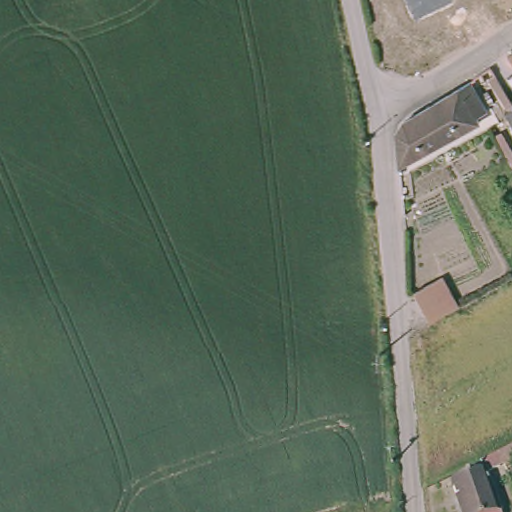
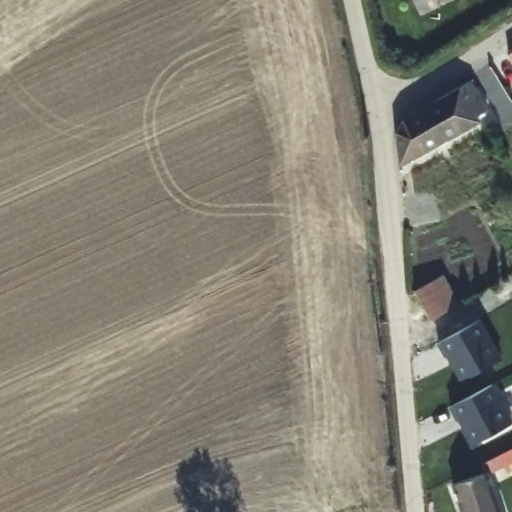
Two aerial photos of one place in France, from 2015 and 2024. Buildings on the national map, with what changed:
unchanged [(504,54),(512,48),(512,68),(512,69),(504,54)]
unchanged [(403,121),(414,114),(468,82),(469,81),(491,65),(508,94),(511,100),(512,100),(512,122),(506,111),(508,109),(489,79),(475,88),(488,109),(477,116),(479,120),(399,166),(394,133),(403,121)]
unchanged [(443,274),(459,306),(431,321),(414,290),(443,274)]
new [(438,343),(482,319),(503,358),(459,381),(438,343)]
new [(494,384),(512,418),(512,423),(471,445),(451,406),(494,384)]
unchanged [(485,462),(497,456),(512,448),(512,464),(492,474),(485,462)]
unchanged [(500,512),(462,512),(455,489),(489,479),(500,512)]

